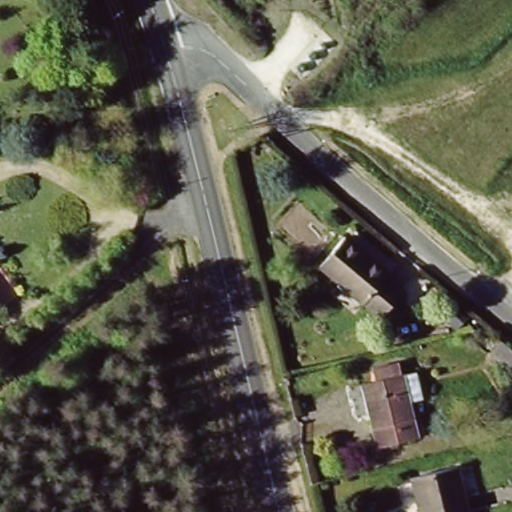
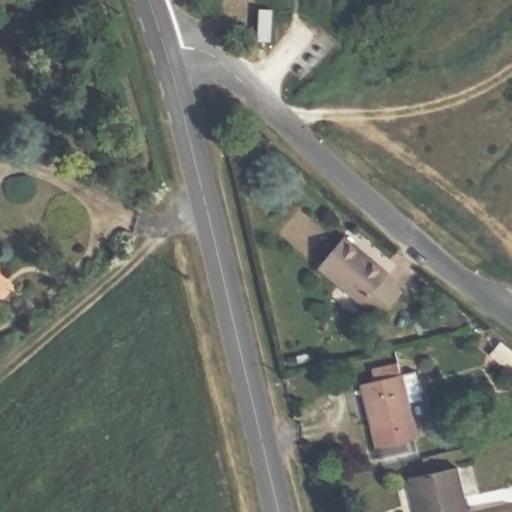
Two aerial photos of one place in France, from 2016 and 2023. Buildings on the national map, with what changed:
unchanged [(383,323),(321,272),(344,244),(374,271),(387,282),(405,298),(383,323)]
unchanged [(512,367),(495,353),(503,341),(512,348),(512,367)]
unchanged [(381,452),(376,432),(365,388),(380,385),(380,380),(396,376),(397,381),(402,379),(412,420),(412,423),(417,444),(381,452)]
unchanged [(466,512),(417,512),(416,510),(418,510),(411,483),(457,475),(466,512)]

